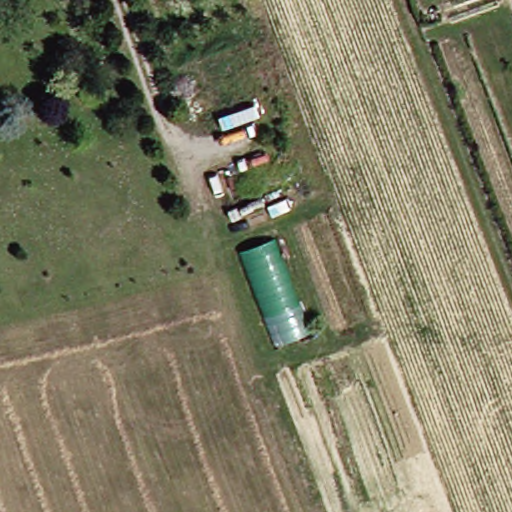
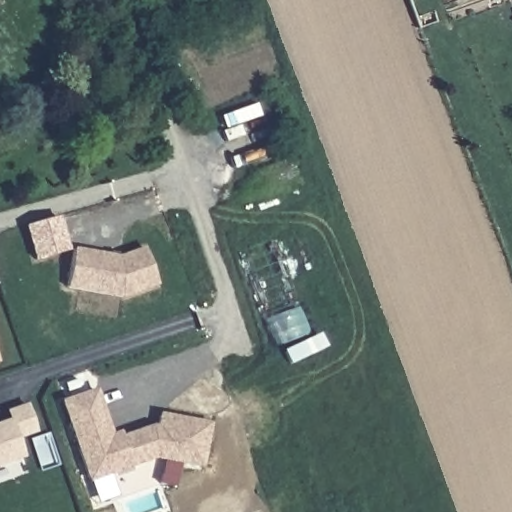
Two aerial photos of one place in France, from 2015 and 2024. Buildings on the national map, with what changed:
new [(70,250),(34,261),(24,225),(60,216),(70,250)]
unchanged [(233,251),(269,238),(305,334),(268,346),(233,251)]
new [(66,289),(73,249),(117,256),(141,248),(156,287),(121,300),(66,289)]
new [(210,423),(202,470),(154,460),(87,483),(59,402),(96,390),(111,433),(151,425),(158,415),(210,423)]
new [(21,455),(0,462),(0,422),(6,420),(4,412),(26,405),(36,434),(16,441),(21,455)]

